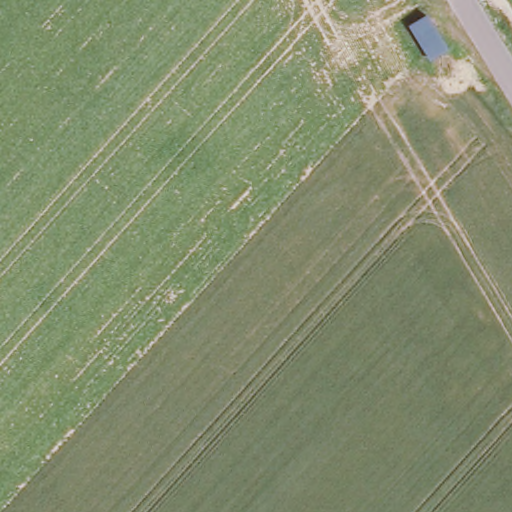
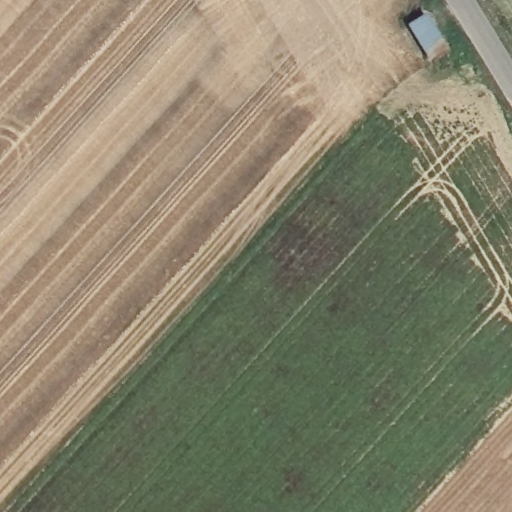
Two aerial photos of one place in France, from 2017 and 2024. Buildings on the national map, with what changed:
unchanged [(425,16),(446,51),(430,63),(407,26),(425,16)]

